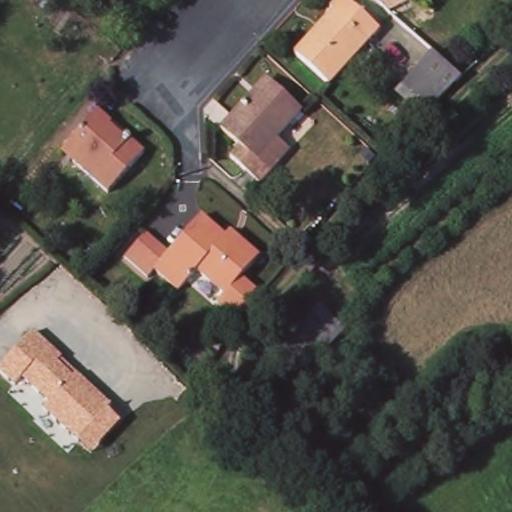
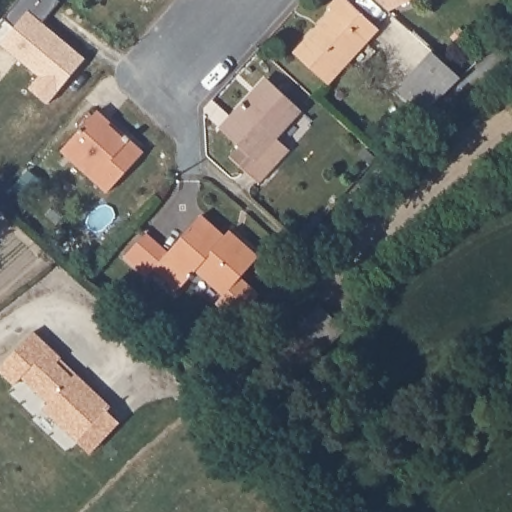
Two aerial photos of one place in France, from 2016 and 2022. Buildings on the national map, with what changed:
new [(17,0),(58,0),(59,1),(43,22),(86,57),(49,104),(29,88),(39,76),(0,45),(14,28),(4,17),(17,0)]
unchanged [(290,56),(330,13),(326,8),(334,0),(344,0),(376,30),(323,87),(290,56)]
unchanged [(388,7),(380,0),(403,0),(388,7)]
unchanged [(453,75),(424,111),(397,87),(424,54),(453,75)]
unchanged [(272,138),(285,150),(252,185),(224,159),(235,148),(217,129),(240,105),(242,105),(266,79),(299,110),(272,138)]
unchanged [(98,110),(125,135),(128,134),(133,139),(131,140),(143,152),(105,193),(59,150),(98,110)]
unchanged [(152,268),(143,279),(120,258),(142,234),(164,254),(198,216),(215,232),(223,225),(234,236),(253,253),(219,292),(194,270),(175,290),(152,268)]
unchanged [(349,329),(305,373),(278,346),(323,302),(349,329)]
unchanged [(45,402),(21,380),(16,386),(0,372),(0,366),(33,332),(113,405),(109,410),(121,423),(91,454),(39,409),(45,402)]

